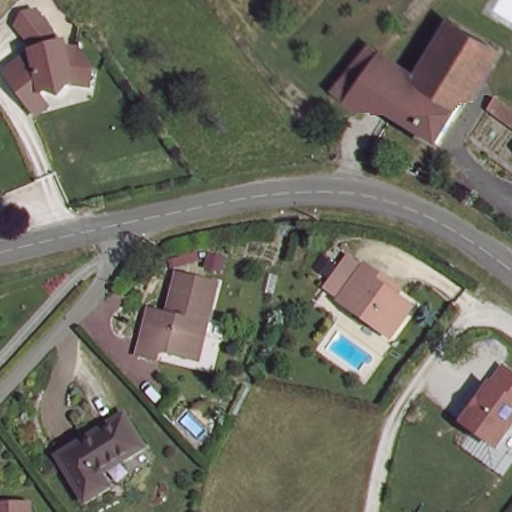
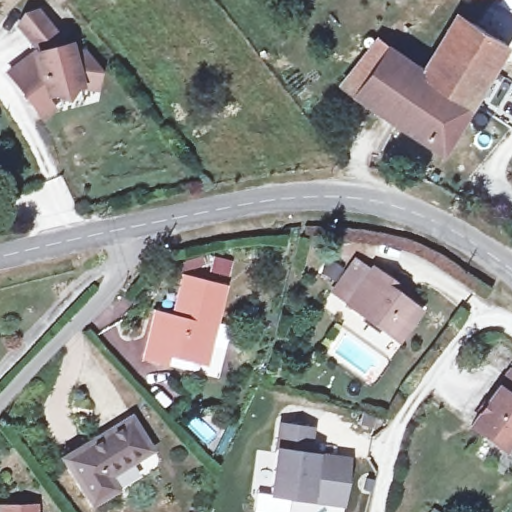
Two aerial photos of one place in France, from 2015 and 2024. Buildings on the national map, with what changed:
unchanged [(49,87),(58,101),(38,115),(0,70),(32,44),(9,21),(30,0),(74,46),(87,40),(100,82),(49,87)]
unchanged [(428,70),(461,18),(511,47),(505,56),(477,104),(428,70)]
unchanged [(449,149),(392,115),(350,85),(383,38),(428,70),(477,104),(449,149)]
demolished [(512,109),(512,121),(495,109),(500,101),(512,109)]
unchanged [(368,262),(392,281),(385,287),(411,308),(388,335),(340,297),(368,262)]
unchanged [(197,360),(164,351),(162,361),(140,355),(155,313),(170,318),(182,276),(222,287),(197,360)]
unchanged [(505,456),(465,428),(495,385),(499,387),(512,370),(512,446),(505,456)]
unchanged [(131,418),(148,448),(104,471),(112,486),(90,499),(65,455),(131,418)]
new [(315,507),(264,498),(275,428),(307,433),(302,458),(342,464),(337,498),(335,510),(315,507)]
unchanged [(28,512),(0,512),(0,506),(27,504),(28,512)]

